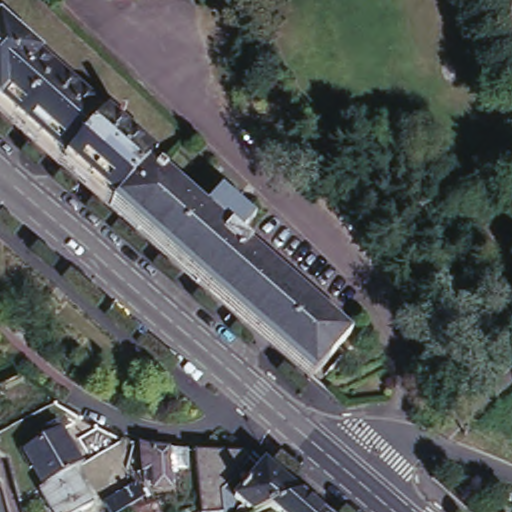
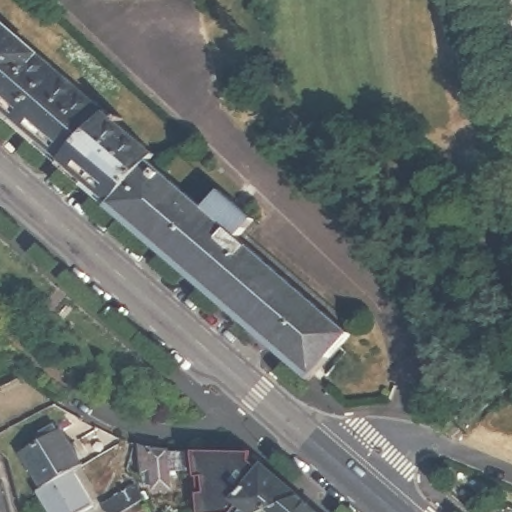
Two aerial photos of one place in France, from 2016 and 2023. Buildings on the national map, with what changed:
unchanged [(507,31),(492,35),(482,0),(498,0),(507,31)]
unchanged [(160,143),(145,161),(107,204),(64,167),(5,115),(0,112),(0,5),(160,143)]
unchanged [(145,161),(200,209),(216,190),(249,220),(232,238),(343,334),(306,377),(192,278),(107,204),(145,161)]
unchanged [(17,460),(56,436),(76,470),(67,476),(37,493),(17,460)]
unchanged [(151,485),(149,467),(142,468),(137,440),(150,443),(158,444),(166,445),(177,445),(185,446),(187,463),(169,465),(171,482),(151,485)]
unchanged [(222,447),(246,447),(270,467),(299,491),(270,503),(253,509),(222,484),(220,485),(221,507),(198,510),(197,489),(192,446),(222,447)]
unchanged [(87,511),(85,512),(43,512),(34,495),(37,493),(67,476),(87,511)]
unchanged [(120,512),(107,512),(102,504),(135,484),(143,498),(150,512),(134,512),(130,505),(120,512)]
unchanged [(322,512),(279,512),(270,503),(299,491),(317,507),(322,512)]

